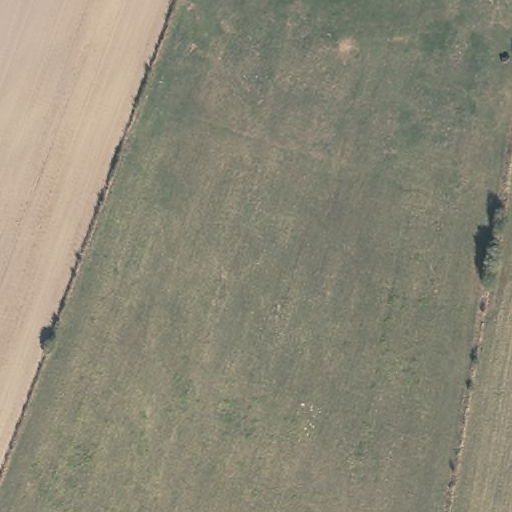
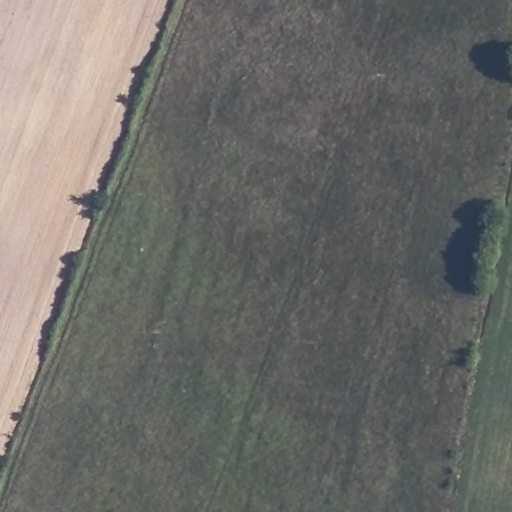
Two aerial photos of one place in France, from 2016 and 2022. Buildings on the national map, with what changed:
[]

